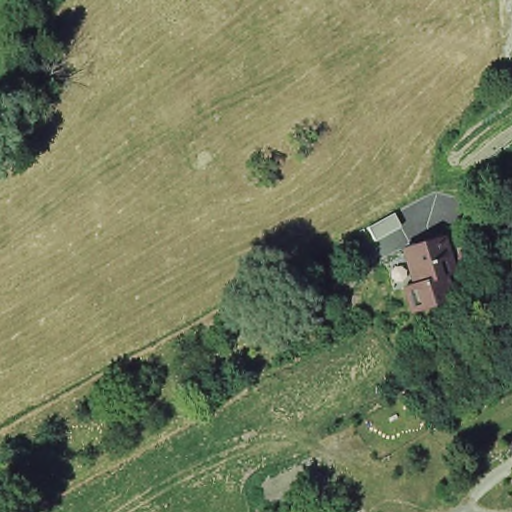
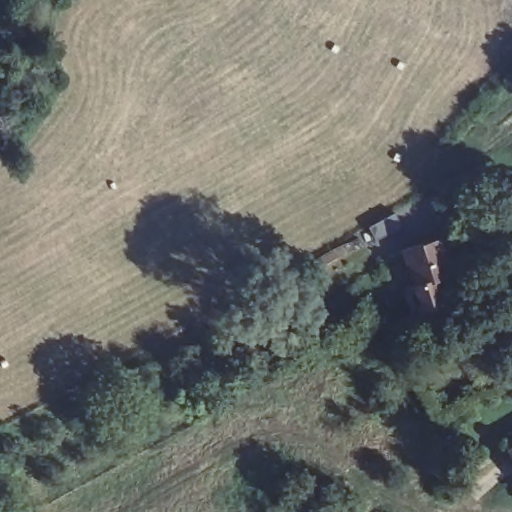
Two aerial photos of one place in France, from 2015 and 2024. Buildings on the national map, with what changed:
unchanged [(440,237),(450,273),(441,275),(448,300),(407,312),(400,287),(410,284),(400,248),(440,237)]

